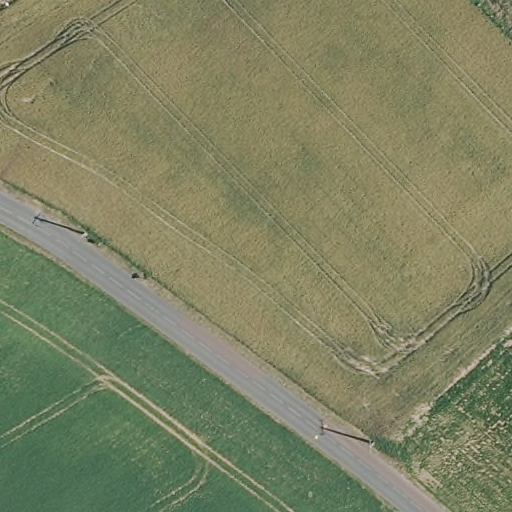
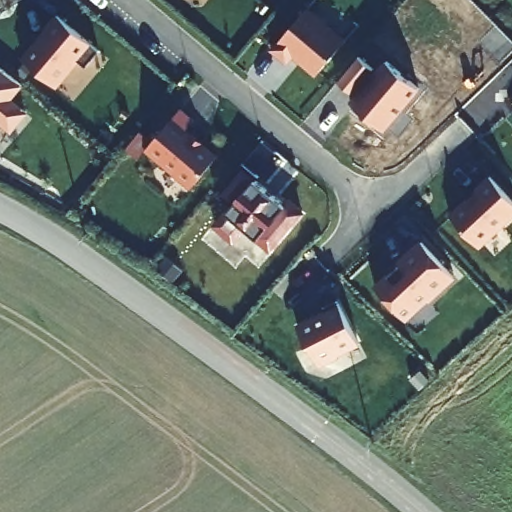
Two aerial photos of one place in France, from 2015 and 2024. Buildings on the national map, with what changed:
new [(311,11),(350,44),(321,79),(296,58),(291,65),(276,53),(311,11)]
new [(49,34),(48,33),(60,17),(103,53),(88,70),(81,63),(58,90),(25,61),(49,34)]
new [(376,70),(387,58),(421,88),(386,130),(351,102),(359,95),(339,80),(360,55),(376,70)]
new [(25,87),(13,102),(29,116),(14,134),(0,122),(0,66),(25,87)]
new [(149,152),(183,112),(197,124),(189,134),(221,160),(195,190),(149,152)]
new [(263,180),(259,184),(289,209),(291,205),(306,217),(275,254),(248,231),(237,245),(219,230),(236,210),(220,197),(246,166),(263,180)]
new [(483,193),(495,181),(512,199),(512,225),(488,247),(480,247),(455,220),(484,195),(483,193)]
new [(403,272),(402,270),(426,247),(459,282),(433,306),(432,305),(410,325),(379,295),(403,272)]
new [(183,267),(173,279),(158,266),(168,255),(183,267)]
new [(314,351),(312,352),(301,331),(329,317),(328,313),(342,306),(363,350),(341,360),(342,362),(324,371),(314,351)]

